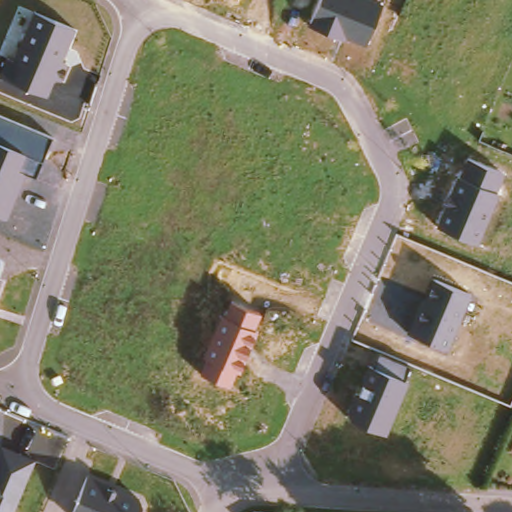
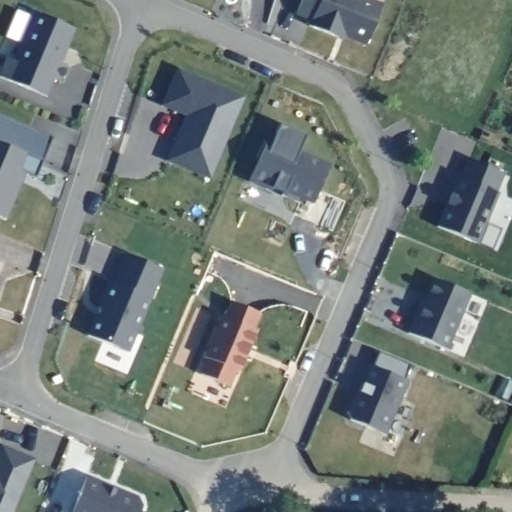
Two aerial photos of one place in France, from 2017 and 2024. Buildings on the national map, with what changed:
unchanged [(347,38),(346,41),(308,26),(310,20),(295,16),(301,0),(373,0),(382,3),(366,44),(347,38)]
unchanged [(69,53),(62,55),(60,61),(65,63),(63,67),(69,69),(62,86),(56,83),(49,101),(2,82),(10,63),(17,66),(37,17),(77,34),(69,53)]
new [(191,115),(167,105),(182,69),(247,96),(214,178),(172,160),(191,115)]
unchanged [(38,177),(20,170),(16,178),(23,181),(7,218),(0,215),(0,114),(55,137),(38,177)]
new [(281,193),(282,191),(272,187),(272,189),(249,179),(267,137),(271,139),(278,122),(305,133),(297,150),(327,163),(312,199),(303,195),(301,201),(281,193)]
unchanged [(457,175),(459,175),(467,159),(504,173),(497,191),(499,193),(479,243),(436,226),(457,175)]
new [(112,283),(116,284),(127,255),(164,270),(129,354),(89,338),(112,283)]
unchanged [(407,332),(433,279),(471,295),(449,350),(407,332)]
unchanged [(0,283),(2,284),(0,290),(0,283)]
unchanged [(255,329),(257,330),(241,373),(237,371),(231,387),(200,374),(207,357),(205,356),(222,316),(224,316),(231,301),(261,314),(255,329)]
unchanged [(346,419),(369,365),(371,366),(378,352),(409,364),(404,379),(407,382),(387,435),(346,419)]
unchanged [(0,512),(0,446),(35,458),(13,512),(0,512)]
unchanged [(142,505),(140,512),(72,512),(87,476),(139,496),(142,505)]

